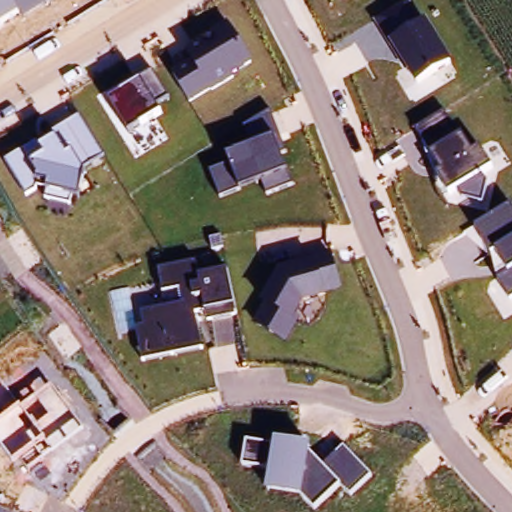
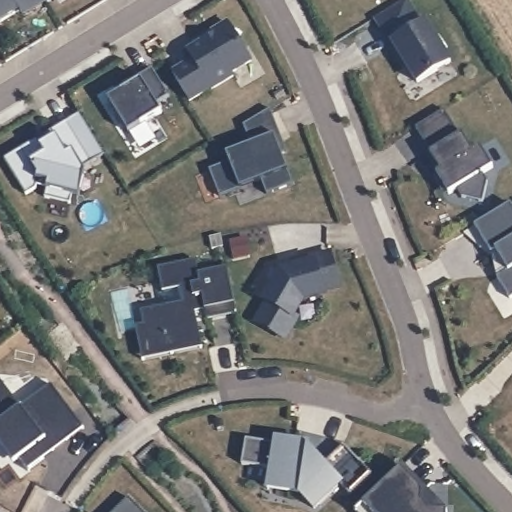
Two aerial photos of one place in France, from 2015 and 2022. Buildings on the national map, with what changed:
unchanged [(51,0),(23,16),(19,10),(0,22),(0,0),(51,0)]
unchanged [(410,0),(423,22),(427,20),(451,62),(418,82),(407,64),(402,67),(376,19),(407,0),(410,0)]
unchanged [(193,57),(188,48),(231,24),(251,64),(188,100),(174,70),(193,57)]
unchanged [(151,68),(168,96),(156,104),(161,110),(127,130),(109,93),(151,68)]
unchanged [(228,160),(226,154),(244,145),(240,129),(272,112),(286,152),(281,154),(286,170),(293,184),(267,194),(264,179),(241,186),(219,194),(210,166),(228,160)]
unchanged [(78,114),(103,154),(83,165),(85,171),(80,196),(72,194),(70,203),(46,197),(47,189),(35,185),(34,188),(25,194),(6,158),(78,114)]
unchanged [(459,137),(462,135),(471,150),(481,146),(493,165),(482,172),(486,181),(483,201),(462,197),(457,188),(444,196),(418,129),(445,115),(459,137)]
unchanged [(512,298),(510,299),(497,278),(493,256),(463,233),(475,225),(512,202),(512,203),(512,298)]
unchanged [(281,265),(331,253),(341,290),(304,298),(287,341),(254,320),(281,265)]
unchanged [(136,326),(143,325),(140,312),(166,304),(158,267),(197,260),(199,270),(226,266),(235,315),(206,320),(203,309),(193,312),(201,346),(201,347),(141,358),(136,326)]
unchanged [(0,379),(20,406),(50,383),(84,428),(29,468),(20,457),(13,462),(0,445),(0,379)]
unchanged [(273,445),(274,436),(310,442),(308,450),(324,464),(344,445),(371,475),(351,494),(340,482),(314,508),(303,495),(267,490),(270,470),(241,462),(246,440),(273,445)]
new [(401,468),(423,490),(422,502),(431,511),(447,511),(447,512),(355,512),(401,468)]
new [(130,497),(144,512),(115,512),(130,497)]

